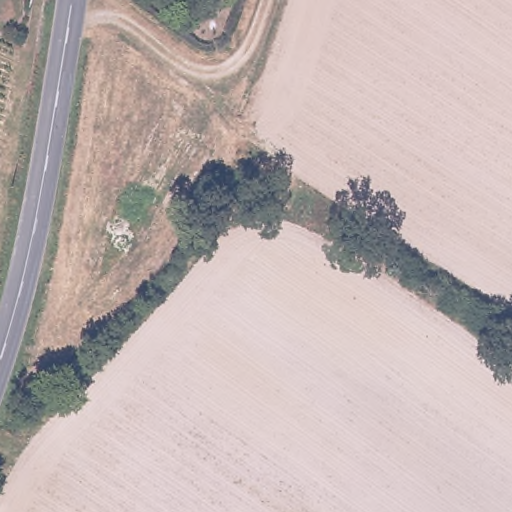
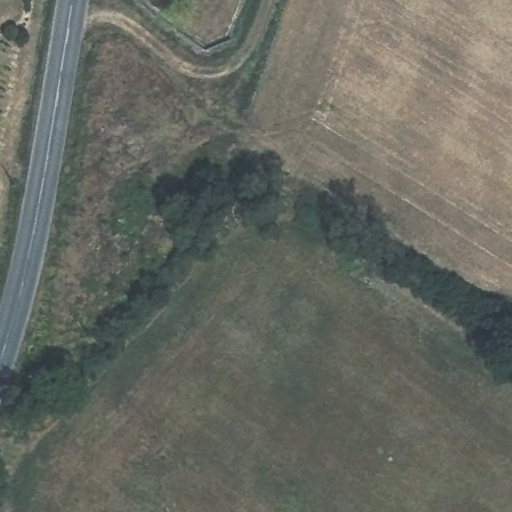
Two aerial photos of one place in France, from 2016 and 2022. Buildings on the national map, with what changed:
[]

